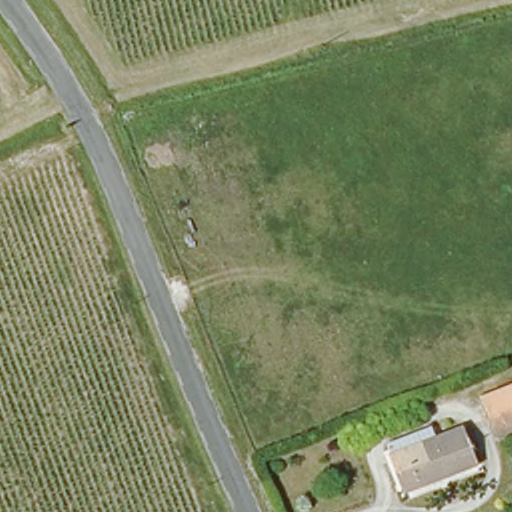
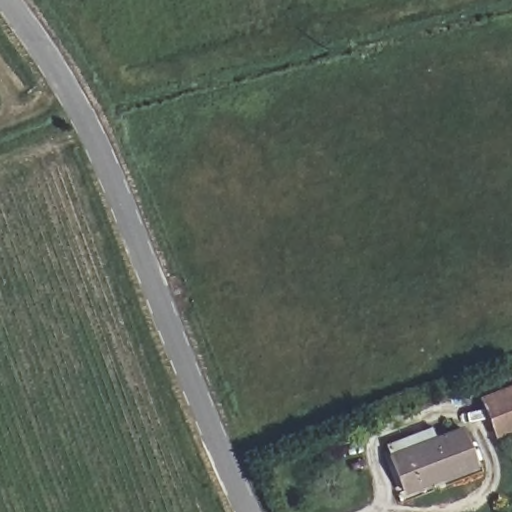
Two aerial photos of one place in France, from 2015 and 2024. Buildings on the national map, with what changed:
unchanged [(478,399),(512,387),(512,428),(492,435),(478,399)]
unchanged [(402,486),(391,451),(458,427),(471,460),(402,486)]

